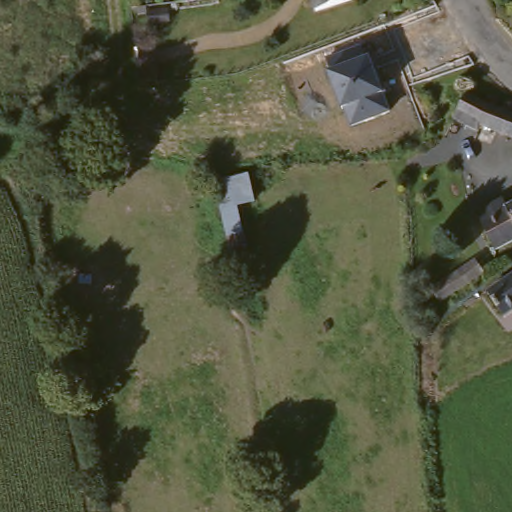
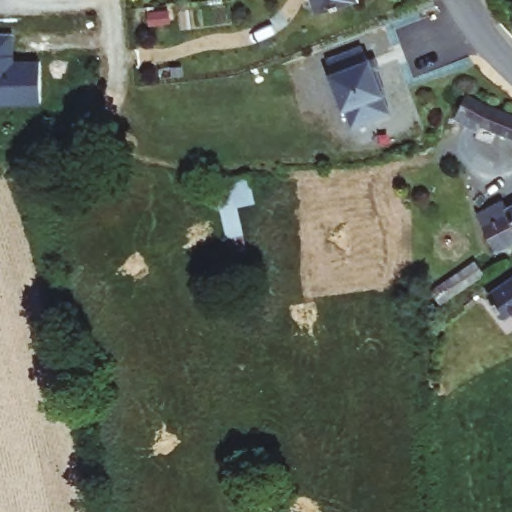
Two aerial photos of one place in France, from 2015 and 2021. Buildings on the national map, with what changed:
unchanged [(309,0),(362,0),(363,5),(310,8),(309,0)]
new [(5,54),(0,54),(0,32),(6,32),(5,54)]
unchanged [(345,109),(343,110),(328,71),(331,69),(326,57),(362,44),(367,57),(372,55),(386,93),(383,95),(390,114),(352,126),(345,109)]
new [(30,103),(0,102),(0,61),(32,62),(30,103)]
unchanged [(512,115),(512,136),(481,124),(482,119),(461,112),(464,98),(512,115)]
unchanged [(204,184),(237,176),(245,206),(235,212),(241,256),(220,259),(204,184)]
unchanged [(503,248),(486,217),(511,204),(512,207),(512,244),(503,248)]
unchanged [(446,247),(456,258),(419,289),(409,279),(446,247)]
unchanged [(498,291),(512,280),(512,309),(498,291)]

